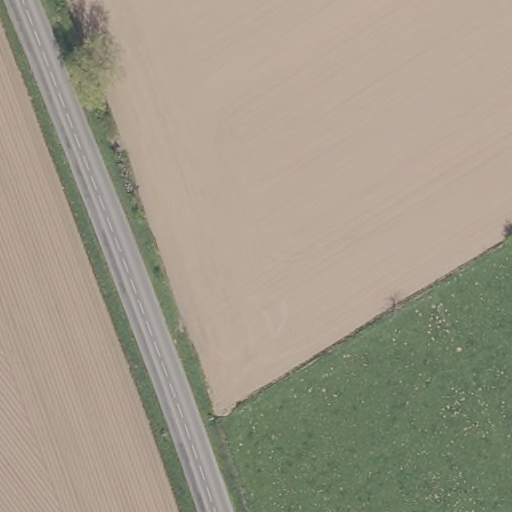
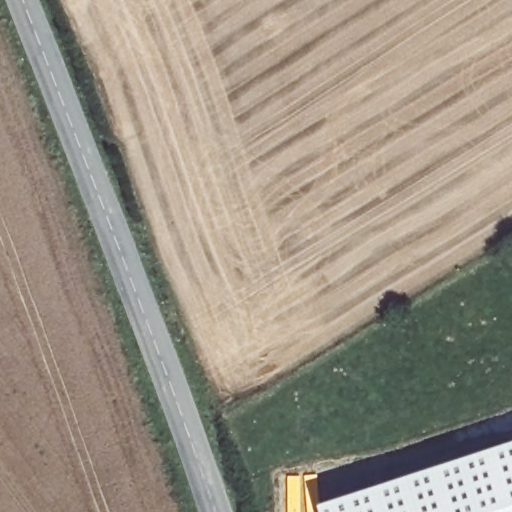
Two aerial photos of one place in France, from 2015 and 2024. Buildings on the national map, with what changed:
new [(320,504),(512,442),(512,512),(323,512),(320,504)]

